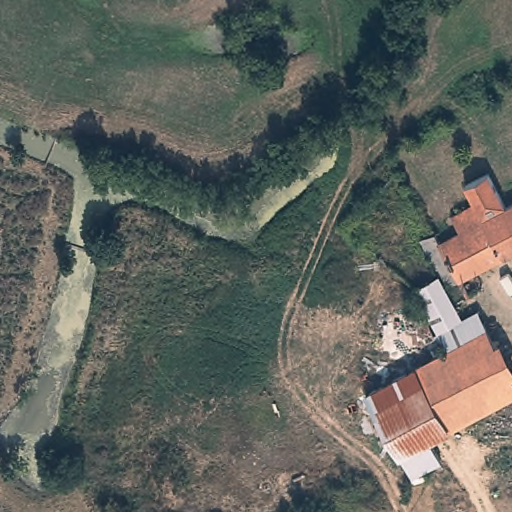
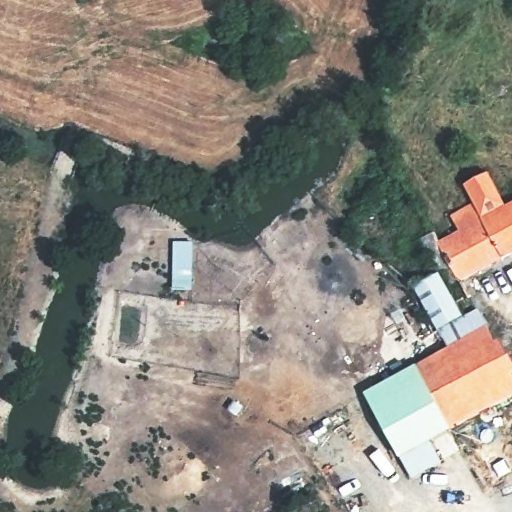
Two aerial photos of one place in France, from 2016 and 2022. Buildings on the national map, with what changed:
unchanged [(512,260),(476,278),(481,291),(456,305),(421,240),(438,232),(446,239),(458,231),(450,215),(474,202),(465,185),(492,171),(512,205),(512,260)]
unchanged [(419,363),(453,348),(445,325),(463,318),(487,308),(512,370),(512,405),(449,433),(419,363)]
unchanged [(449,433),(397,458),(365,388),(419,363),(449,433)]

